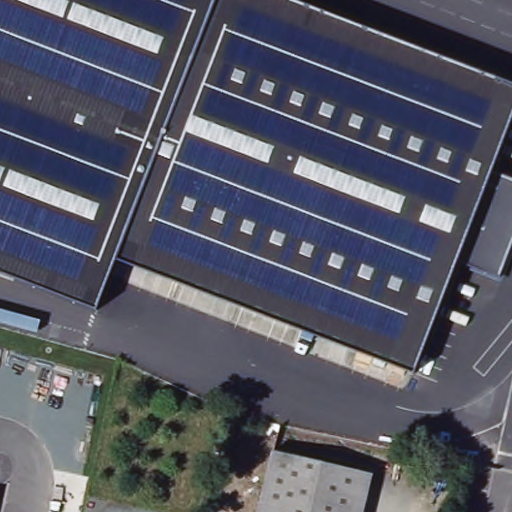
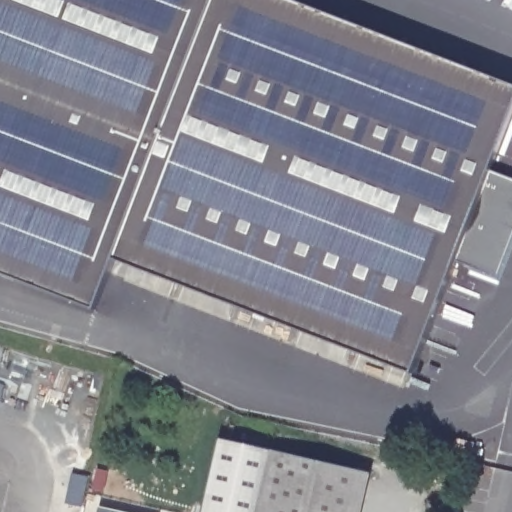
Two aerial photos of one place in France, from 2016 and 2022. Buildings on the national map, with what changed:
unchanged [(489,166),(512,175),(512,240),(498,277),(456,263),(415,370),(119,255),(100,312),(0,274),(0,0),(304,0),(512,81),(512,110),(489,166)]
new [(278,450),(264,512),(205,512),(221,437),(278,450)]
unchanged [(376,472),(367,512),(264,512),(278,450),(376,472)]

